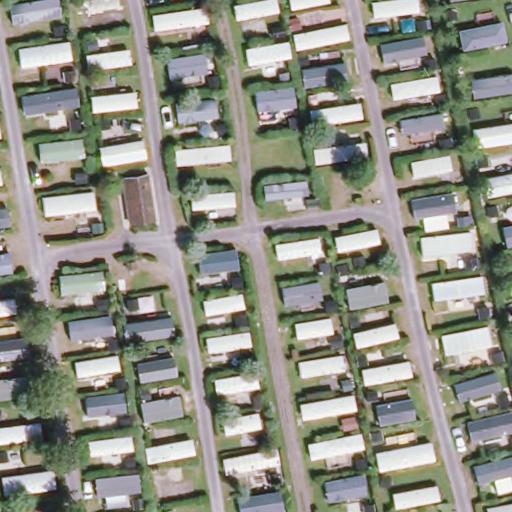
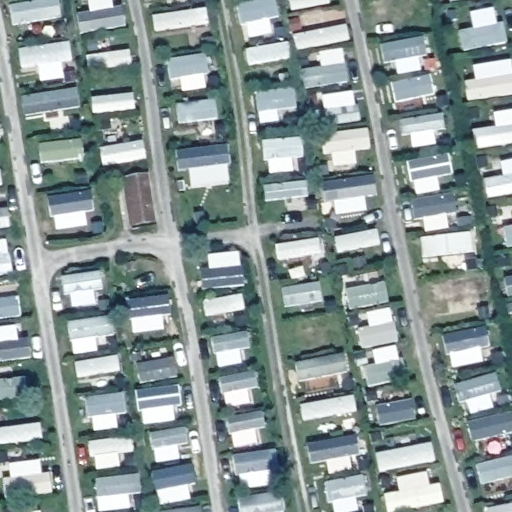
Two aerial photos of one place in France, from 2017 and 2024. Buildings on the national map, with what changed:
unchanged [(122,179),(147,177),(153,220),(125,223),(122,179)]

